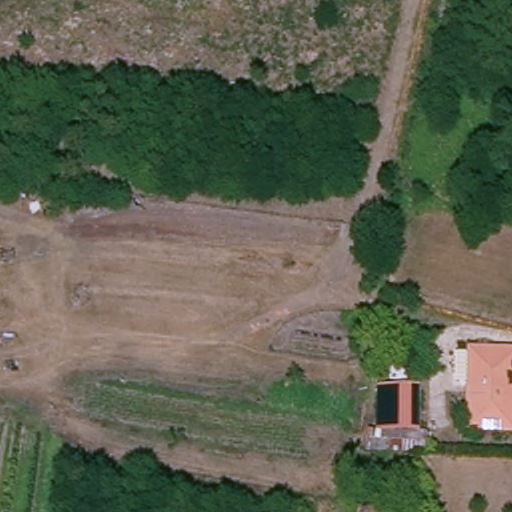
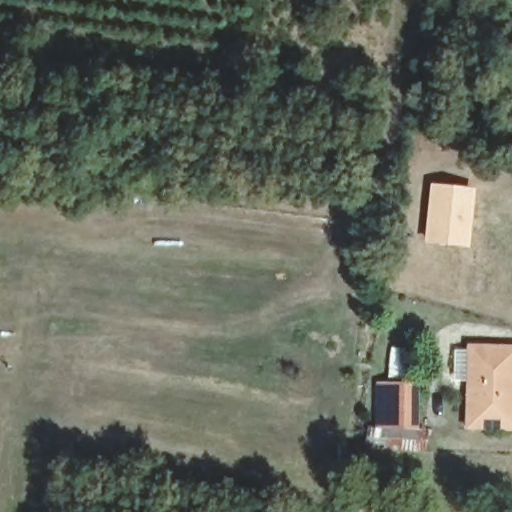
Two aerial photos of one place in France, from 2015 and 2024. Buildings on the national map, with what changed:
new [(425,244),(431,185),(476,188),(470,249),(425,244)]
unchanged [(510,352),(512,424),(466,425),(465,351),(510,352)]
unchanged [(403,385),(405,426),(377,426),(376,387),(403,385)]
unchanged [(356,502),(383,505),(382,512),(355,512),(356,502)]

